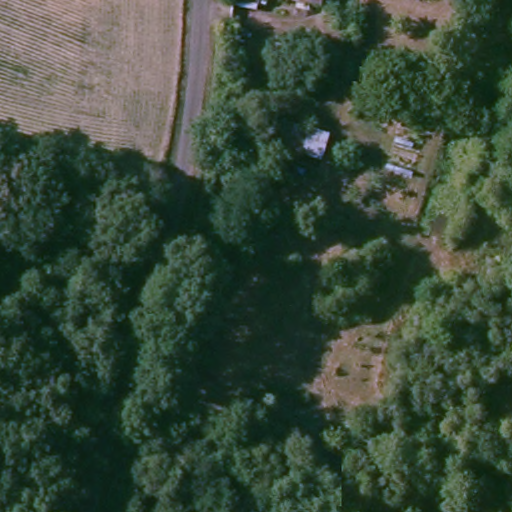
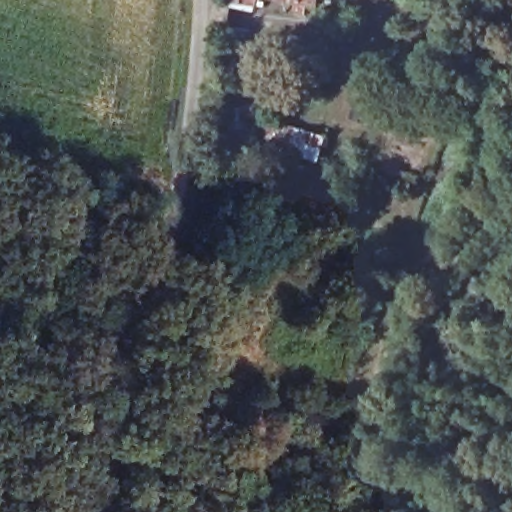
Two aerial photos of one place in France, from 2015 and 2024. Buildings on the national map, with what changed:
unchanged [(250,82),(246,109),(227,106),(231,80),(250,82)]
unchanged [(317,128),(313,142),(282,134),(286,119),(317,128)]

